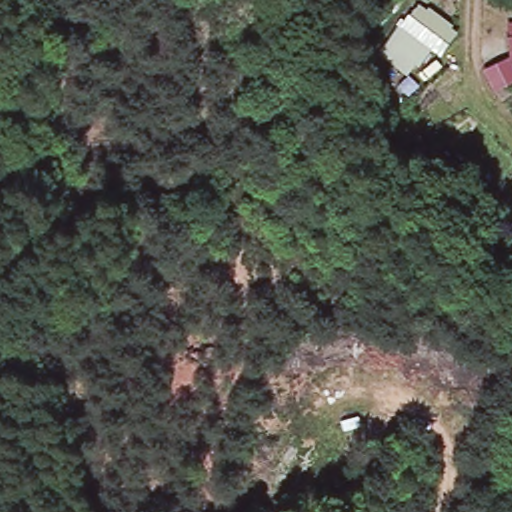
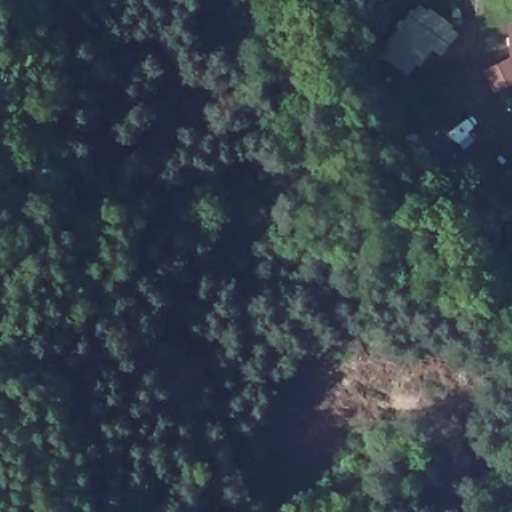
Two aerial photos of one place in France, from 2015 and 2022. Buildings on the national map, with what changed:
unchanged [(426,68),(416,62),(404,81),(374,56),(423,1),(458,27),(426,68)]
unchanged [(512,64),(512,84),(492,92),(481,67),(509,56),(509,35),(512,35),(512,64)]
unchanged [(490,146),(459,164),(435,120),(467,103),(490,146)]

